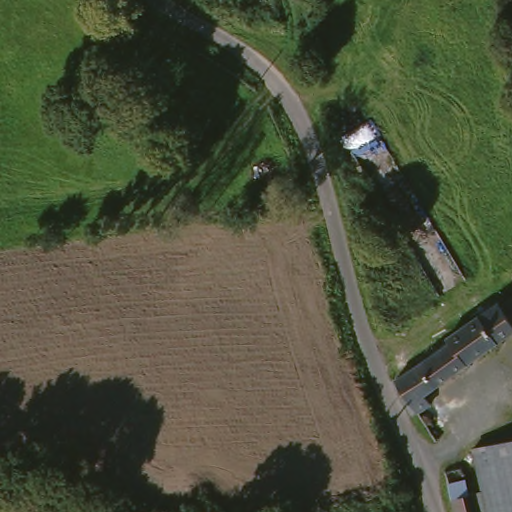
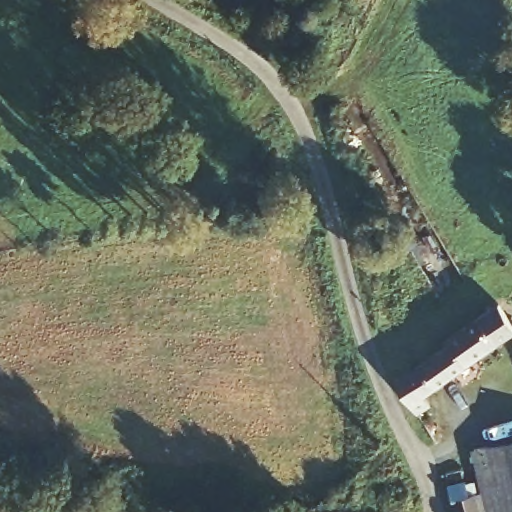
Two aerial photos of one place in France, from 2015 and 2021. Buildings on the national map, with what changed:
unchanged [(418,416),(418,415),(398,383),(428,364),(426,358),(441,348),(483,322),(504,309),(512,304),(512,341),(501,348),(496,351),(481,362),(428,396),(435,406),(418,416)]
unchanged [(512,439),(512,512),(511,512),(494,445),(512,439)]
unchanged [(494,445),(511,512),(488,512),(474,451),(494,445)]
unchanged [(467,492),(476,490),(481,512),(453,512),(447,485),(464,481),(467,492)]

